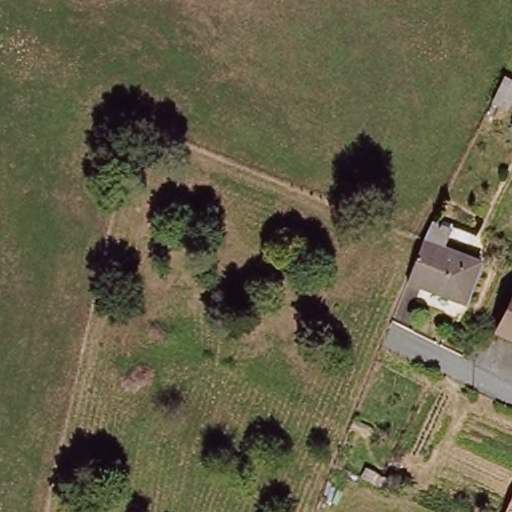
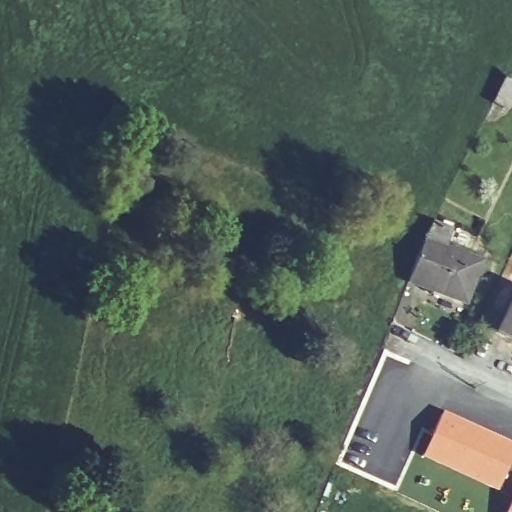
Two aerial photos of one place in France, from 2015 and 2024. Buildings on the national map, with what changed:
unchanged [(506,116),(487,107),(503,73),(512,77),(512,105),(506,116)]
unchanged [(479,262),(463,302),(410,281),(425,242),(434,222),(453,230),(446,249),(479,262)]
unchanged [(512,302),(512,338),(498,332),(512,302)]
new [(512,442),(512,458),(497,492),(420,456),(442,410),(512,442)]
unchanged [(509,512),(512,504),(512,512),(509,512)]

